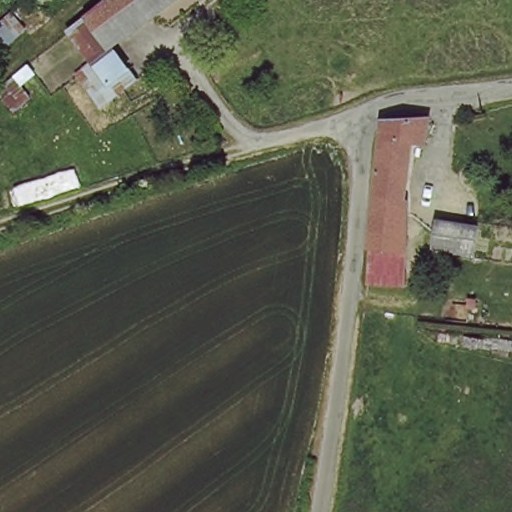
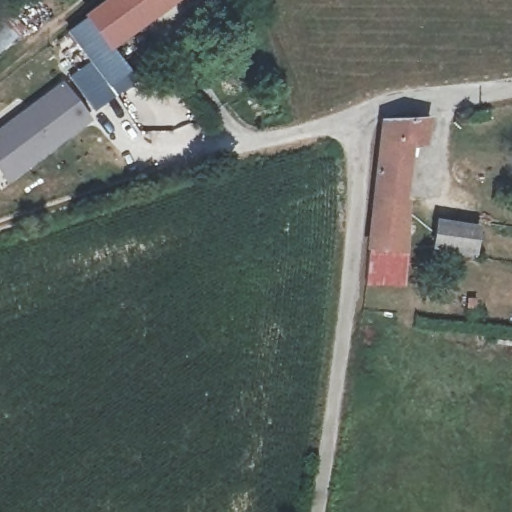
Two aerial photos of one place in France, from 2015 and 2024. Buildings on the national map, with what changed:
unchanged [(117,95),(94,61),(105,52),(85,25),(114,1),(115,0),(179,0),(113,52),(139,87),(135,91),(117,95)]
unchanged [(18,39),(0,54),(0,21),(10,13),(26,32),(18,39)]
unchanged [(85,25),(105,52),(94,61),(117,95),(135,91),(106,114),(80,84),(93,67),(68,38),(85,25)]
new [(8,182),(0,173),(0,128),(61,82),(90,121),(8,182)]
unchanged [(424,141),(408,142),(408,252),(365,252),(366,241),(367,129),(423,114),(424,141)]
unchanged [(480,230),(481,251),(442,252),(442,226),(480,230)]
unchanged [(365,286),(365,252),(408,252),(405,287),(365,286)]

